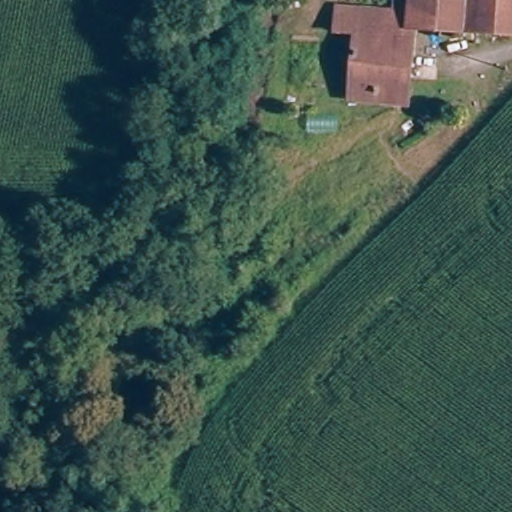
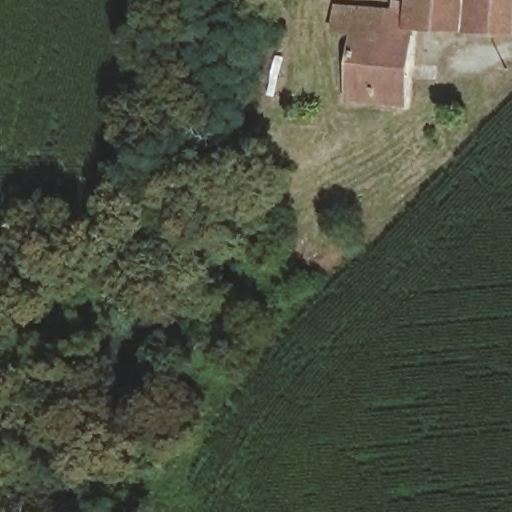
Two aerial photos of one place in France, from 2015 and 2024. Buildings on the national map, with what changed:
unchanged [(355,104),(359,20),(393,22),(394,7),(408,7),(408,0),(512,0),(512,36),(418,32),(415,110),(355,104)]

